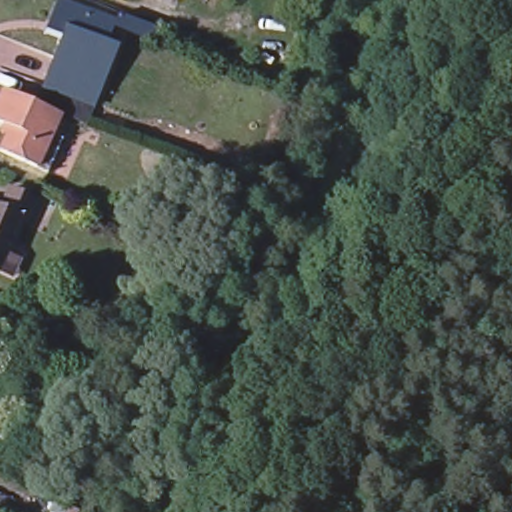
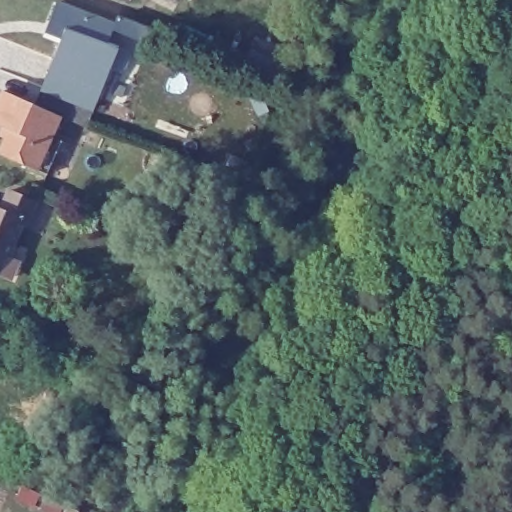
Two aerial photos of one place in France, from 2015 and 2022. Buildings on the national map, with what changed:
unchanged [(170,0),(172,0),(172,1),(170,0)]
unchanged [(50,25),(58,4),(115,26),(108,45),(114,47),(108,63),(112,64),(94,109),(43,88),(66,32),(50,25)]
unchanged [(0,152),(0,150),(6,134),(0,131),(0,128),(3,122),(0,121),(0,97),(5,86),(60,111),(52,132),(63,137),(56,154),(49,172),(38,168),(0,152)]
unchanged [(15,192),(43,203),(35,223),(29,221),(19,246),(0,238),(0,208),(8,211),(15,192)]
unchanged [(8,273),(0,269),(0,238),(19,246),(8,273)]

